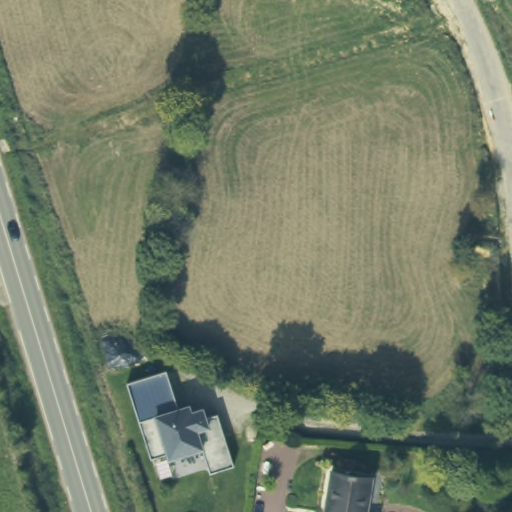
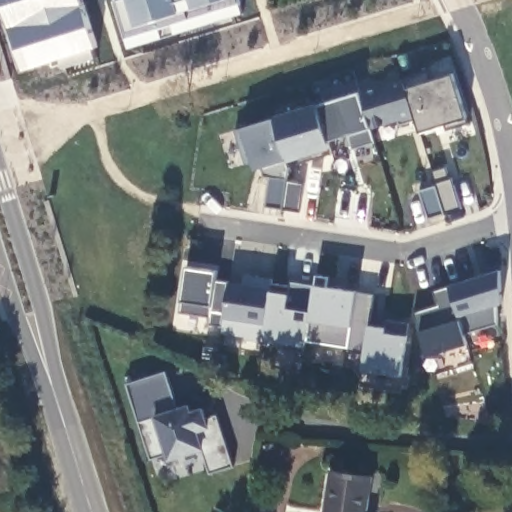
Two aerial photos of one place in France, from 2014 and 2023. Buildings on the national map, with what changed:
new [(65,67),(62,62),(24,72),(1,0),(84,0),(99,57),(65,67)]
new [(113,1),(115,0),(239,0),(243,12),(128,50),(113,1)]
new [(403,79),(429,72),(432,82),(454,75),(470,125),(447,132),(445,126),(420,134),(415,120),(403,79)]
new [(415,120),(401,127),(398,122),(372,130),(375,143),(353,149),(349,134),(327,141),(317,107),(360,92),(403,79),(415,120)]
new [(317,107),(332,156),(310,162),(308,156),(286,162),(273,120),(317,107)]
new [(299,216),(282,212),(265,210),(269,181),(263,180),(260,171),(254,173),(252,165),(244,167),(233,132),(273,120),(286,162),(289,169),(286,183),(304,186),(299,216)]
new [(432,172),(449,167),(462,211),(445,216),(429,221),(420,192),(436,187),(432,172)]
new [(185,267),(218,272),(212,312),(224,313),(222,328),(208,327),(209,319),(179,315),(185,267)]
new [(464,333),(459,316),(449,287),(498,270),(501,305),(495,307),(496,323),(464,333)]
new [(266,325),(263,341),(222,334),(222,328),(224,313),(229,281),(242,282),(243,275),(272,278),(271,290),(266,325)]
new [(408,337),(401,376),(360,369),(362,354),(348,352),(348,347),(306,341),(309,319),(313,292),(315,287),(357,292),(374,293),(371,318),(408,323),(408,337)]
new [(438,306),(433,292),(449,287),(468,345),(427,358),(413,313),(438,306)]
new [(271,290),(295,293),(295,288),(313,292),(304,359),(281,356),(283,348),(263,345),(271,290)]
unchanged [(210,473),(202,449),(169,460),(167,452),(151,458),(127,383),(166,372),(179,407),(191,403),(193,411),(204,407),(207,417),(217,414),(233,466),(210,473)]
unchanged [(369,512),(327,512),(333,468),(375,475),(369,512)]

